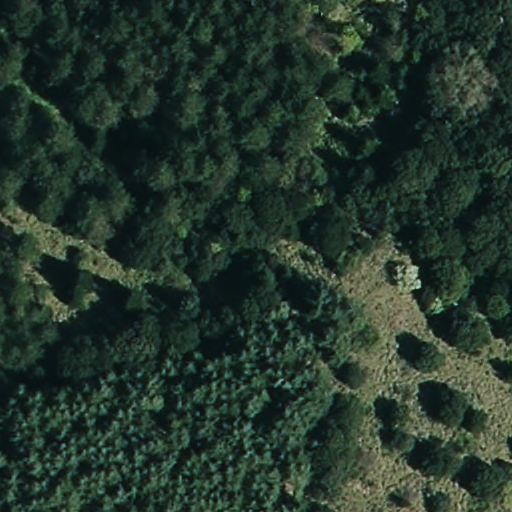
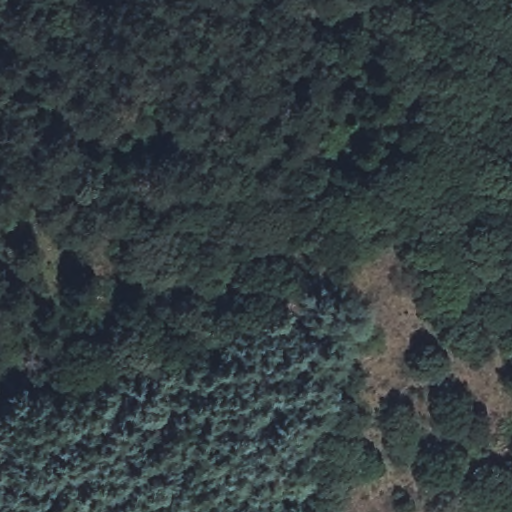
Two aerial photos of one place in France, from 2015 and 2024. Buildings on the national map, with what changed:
[]

